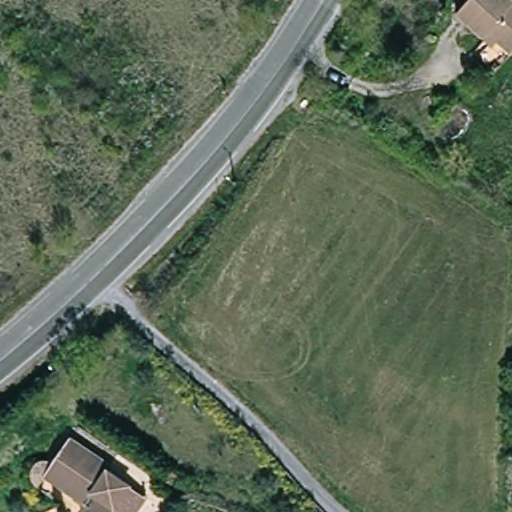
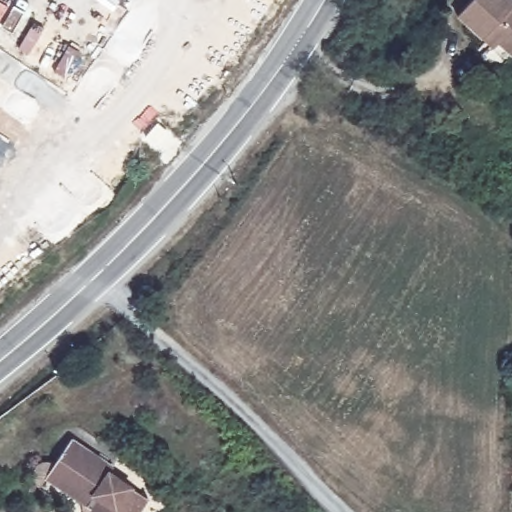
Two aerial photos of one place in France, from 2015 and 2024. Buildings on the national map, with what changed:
unchanged [(512,1),(512,49),(507,45),(490,61),(475,46),(482,38),(458,15),(472,0),(511,0),(512,1)]
unchanged [(121,475),(118,479),(151,510),(149,512),(94,512),(51,473),(83,440),(121,475)]

